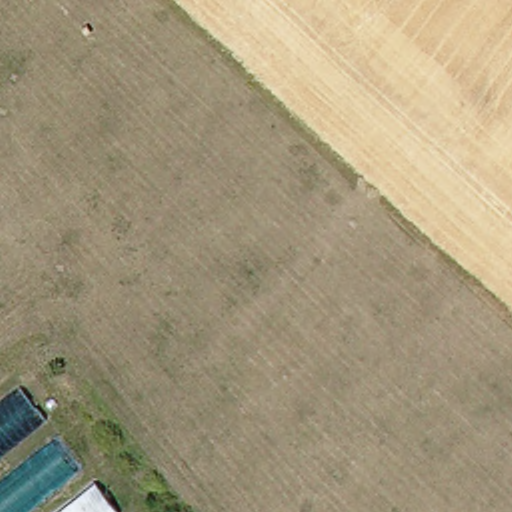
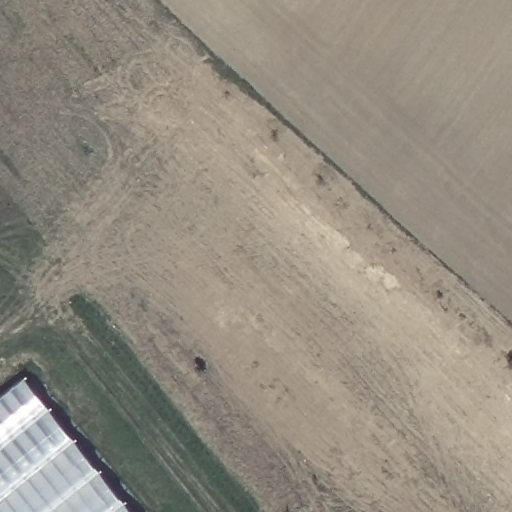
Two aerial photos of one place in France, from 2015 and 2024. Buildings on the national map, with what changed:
new [(0,512),(0,403),(26,382),(128,512),(0,512)]
demolished [(0,458),(0,408),(24,389),(49,420),(0,458)]
demolished [(63,434),(86,464),(35,504),(10,476),(63,434)]

